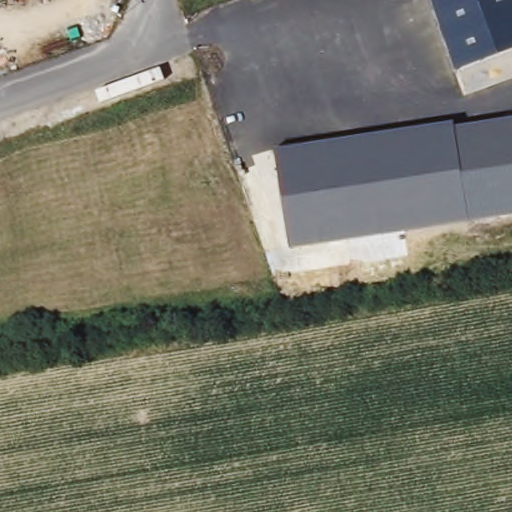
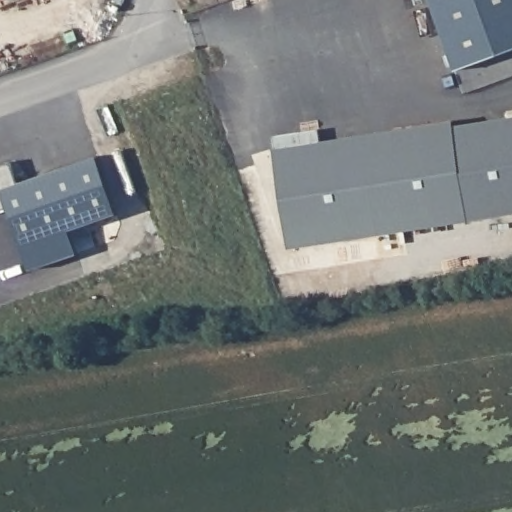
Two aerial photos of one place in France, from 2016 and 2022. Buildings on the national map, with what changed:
unchanged [(512,0),(512,50),(457,70),(433,0),(512,0)]
unchanged [(455,127),(512,118),(512,215),(470,222),(455,127)]
unchanged [(453,122),(470,222),(290,250),(275,149),(453,122)]
new [(17,184),(97,156),(116,214),(21,247),(7,208),(0,211),(0,165),(10,162),(17,184)]
new [(70,229),(77,254),(29,270),(21,247),(70,229)]

